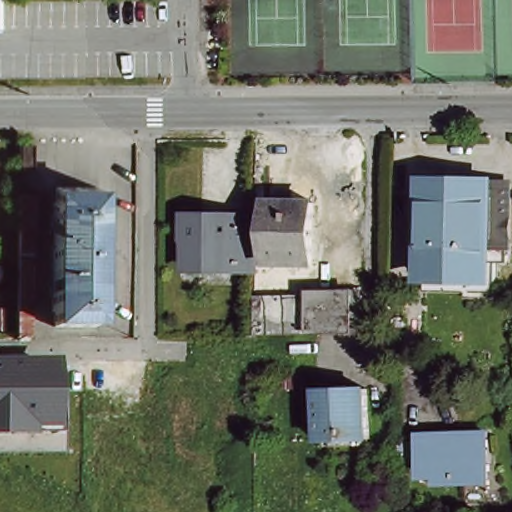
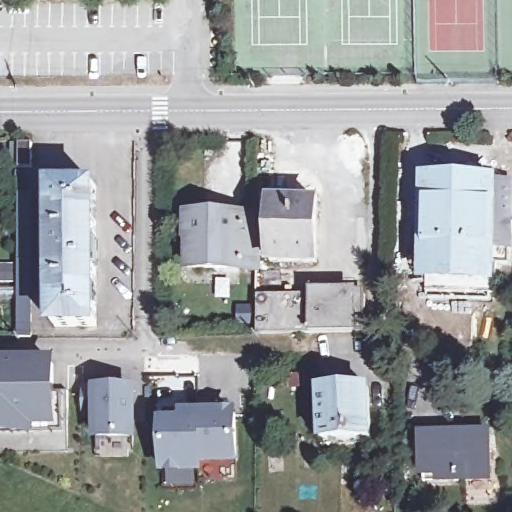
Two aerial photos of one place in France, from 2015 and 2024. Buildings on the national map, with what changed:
unchanged [(19,144),(31,144),(31,159),(31,168),(18,169),(19,158),(19,144)]
unchanged [(433,274),(433,208),(434,179),(442,179),(512,179),(512,258),(500,258),(500,288),(491,288),(433,288),(433,274)]
unchanged [(96,187),(97,204),(94,204),(94,222),(96,223),(98,291),(93,291),(95,309),(97,309),(97,326),(55,327),(56,312),(53,311),(52,202),(55,202),(55,187),(96,187)]
unchanged [(16,339),(18,195),(32,195),(30,339),(16,339)]
unchanged [(311,203),(311,264),(266,263),(266,203),(311,203)]
unchanged [(252,269),(186,269),(186,218),(198,218),(198,214),(223,214),(223,218),(252,219),(252,269)]
unchanged [(257,298),(365,295),(365,301),(364,333),(256,335),(257,298)]
unchanged [(43,381),(58,381),(58,442),(0,443),(0,354),(43,354),(43,381)]
new [(77,412),(78,385),(92,386),(92,376),(110,376),(110,389),(128,389),(128,435),(92,434),(92,413),(77,412)]
unchanged [(371,438),(323,441),(321,391),(368,389),(371,438)]
new [(181,424),(181,410),(200,409),(199,401),(217,401),(217,414),(235,414),(236,460),(200,461),(200,469),(165,471),(163,424),(181,424)]
unchanged [(488,435),(490,479),(424,482),(422,437),(488,435)]

